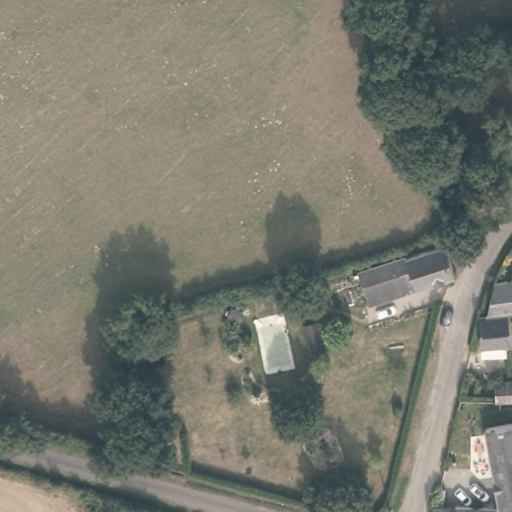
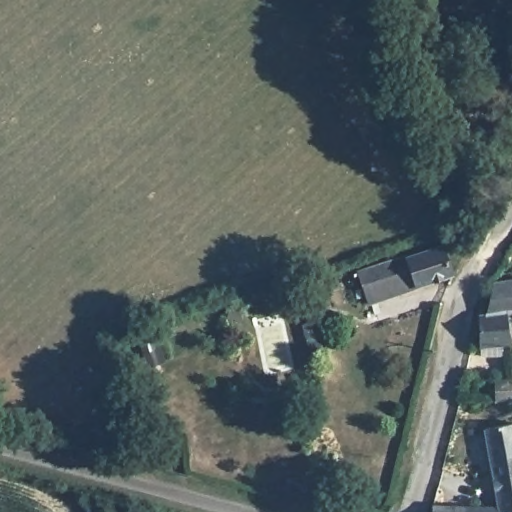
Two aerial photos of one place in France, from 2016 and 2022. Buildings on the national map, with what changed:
unchanged [(453,274),(368,302),(357,273),(446,244),(453,274)]
unchanged [(486,314),(495,283),(512,280),(512,310),(509,311),(511,346),(479,350),(478,317),(486,314)]
unchanged [(309,354),(301,325),(319,321),(326,349),(309,354)]
unchanged [(511,380),(512,379),(512,399),(511,399),(493,400),(493,382),(511,380)]
unchanged [(500,508),(486,429),(512,424),(512,508),(500,508)]
unchanged [(467,508),(467,512),(431,512),(430,507),(467,508)]
unchanged [(500,508),(512,508),(512,512),(467,512),(467,508),(500,508)]

